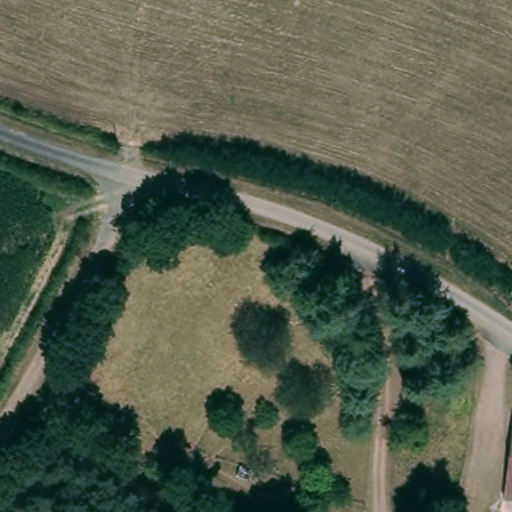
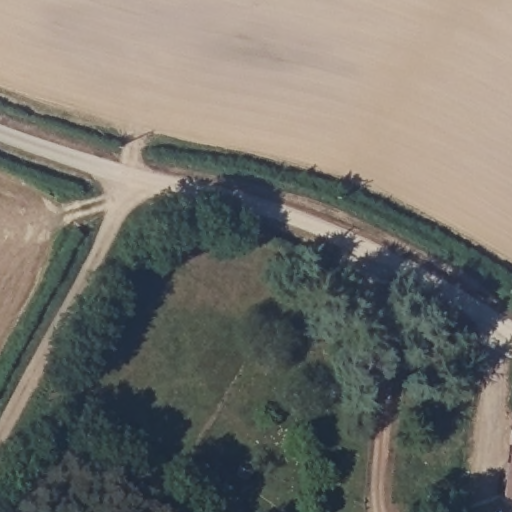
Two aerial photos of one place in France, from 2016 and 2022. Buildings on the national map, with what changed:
unchanged [(512,430),(512,490),(503,488),(512,430)]

